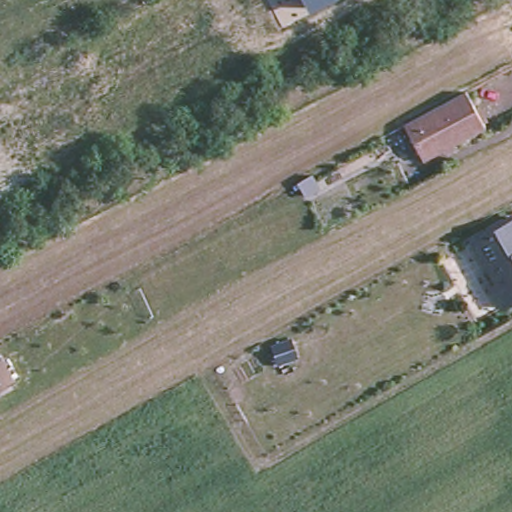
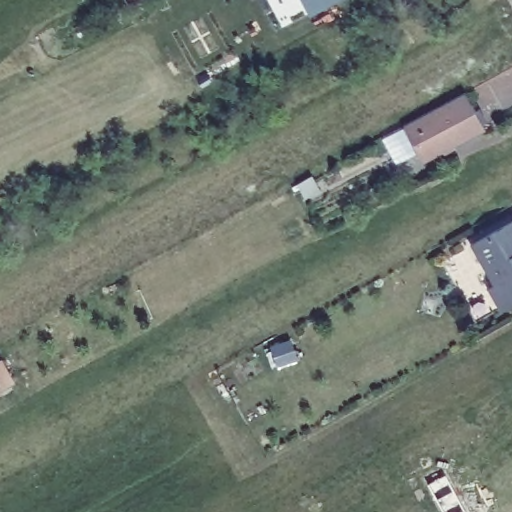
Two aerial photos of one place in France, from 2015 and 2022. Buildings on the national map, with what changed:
unchanged [(303,0),(335,0),(310,12),(303,0)]
unchanged [(464,93),(483,129),(421,162),(402,126),(464,93)]
unchanged [(501,308),(490,288),(496,284),(491,275),(473,243),(512,221),(512,302),(501,308)]
unchanged [(1,360),(13,382),(0,388),(0,360),(1,360)]

